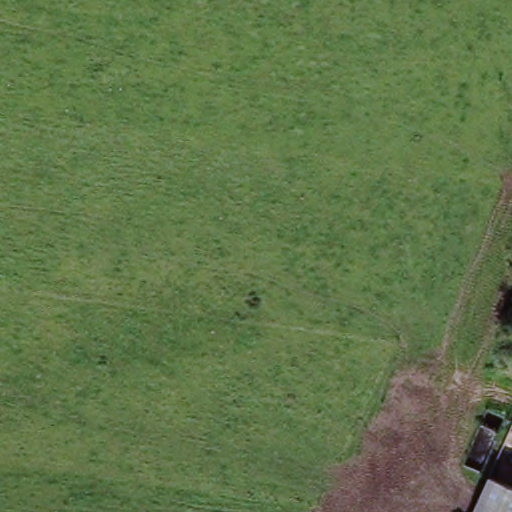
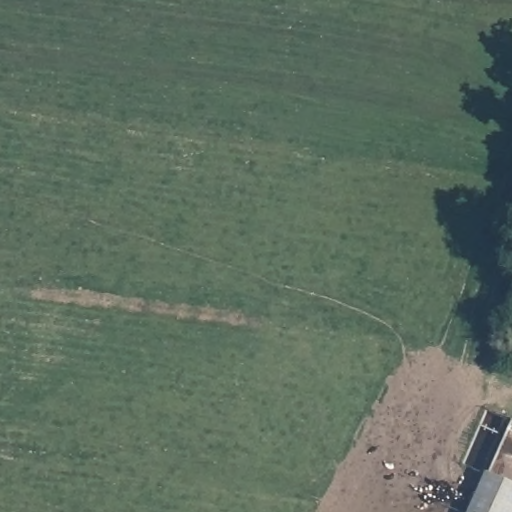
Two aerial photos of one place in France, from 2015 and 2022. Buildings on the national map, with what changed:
unchanged [(512,484),(512,512),(469,512),(487,472),(512,484)]

